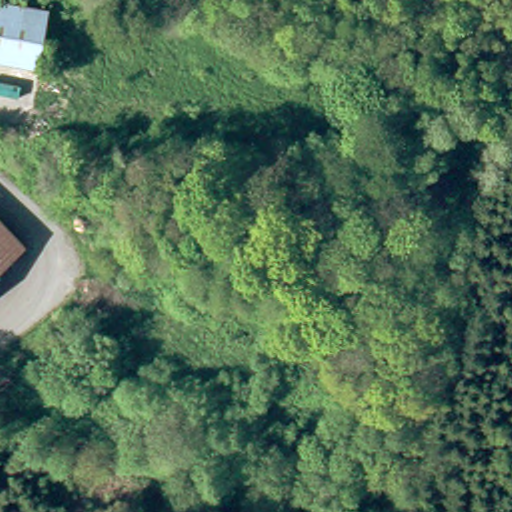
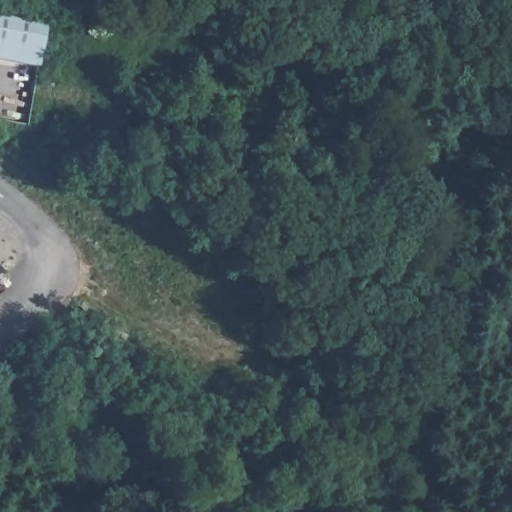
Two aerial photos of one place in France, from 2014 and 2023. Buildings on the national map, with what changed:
unchanged [(44,64),(0,56),(0,0),(6,0),(55,9),(44,64)]
unchanged [(0,213),(31,247),(0,275),(0,213)]

